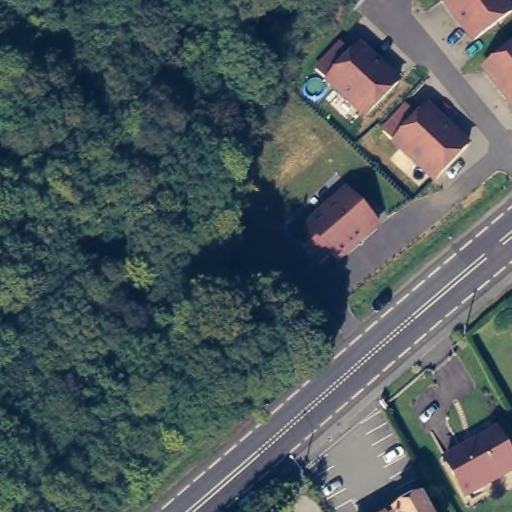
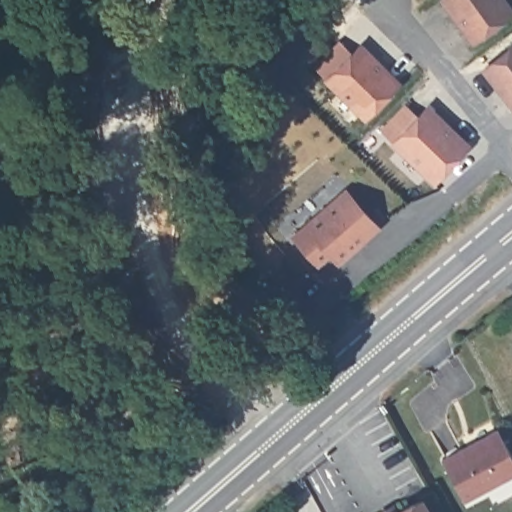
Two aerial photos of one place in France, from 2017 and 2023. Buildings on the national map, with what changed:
unchanged [(468,37),(443,0),(502,0),(508,10),(468,37)]
unchanged [(362,115),(325,77),(313,64),(340,39),(352,52),(361,43),(397,81),(362,115)]
unchanged [(512,45),(512,106),(483,66),(512,45)]
unchanged [(464,147),(429,180),(391,141),(378,128),(404,103),(416,116),(425,107),(464,147)]
unchanged [(305,226),(345,192),(375,229),(335,262),(327,252),(313,264),(291,237),(305,226)]
unchanged [(493,432),(512,470),(465,495),(445,458),(493,432)]
unchanged [(381,510),(393,503),(397,510),(422,496),(431,512),(382,512),(381,510)]

